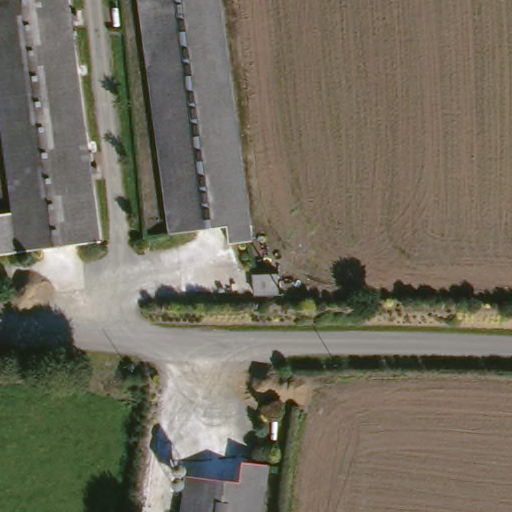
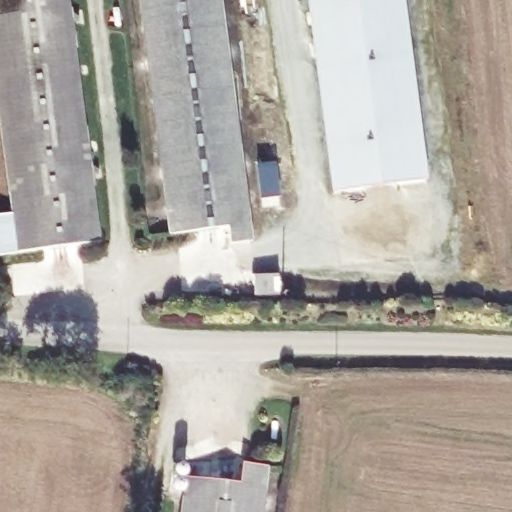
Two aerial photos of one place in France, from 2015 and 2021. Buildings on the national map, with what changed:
unchanged [(0,260),(0,222),(7,221),(0,160),(0,0),(64,0),(93,251),(0,260)]
unchanged [(222,229),(168,234),(139,0),(217,0),(246,242),(224,244),(222,229)]
new [(333,192),(307,0),(405,0),(428,180),(333,192)]
unchanged [(228,314),(225,294),(253,290),(256,310),(228,314)]
demolished [(259,325),(256,305),(283,301),(286,322),(259,325)]
unchanged [(185,484),(236,491),(240,467),(263,470),(257,512),(181,512),(185,484)]

